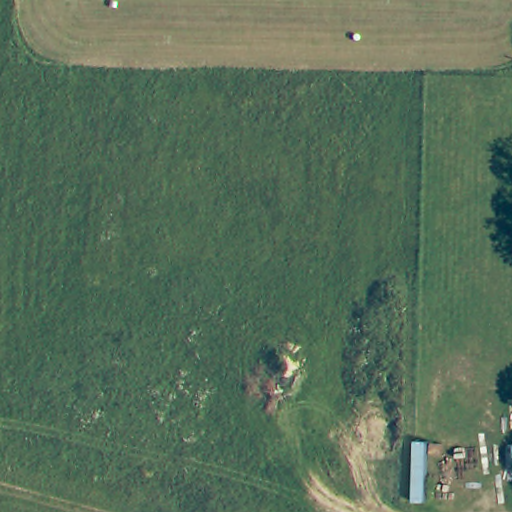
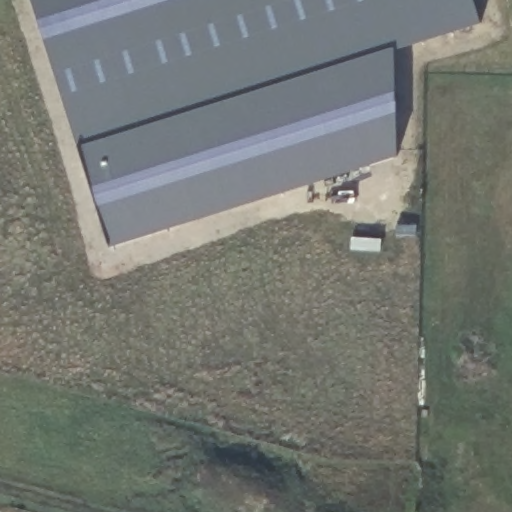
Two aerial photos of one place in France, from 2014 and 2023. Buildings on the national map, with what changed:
new [(398,158),(108,250),(77,148),(31,0),(473,0),(481,25),(395,51),(398,158)]

